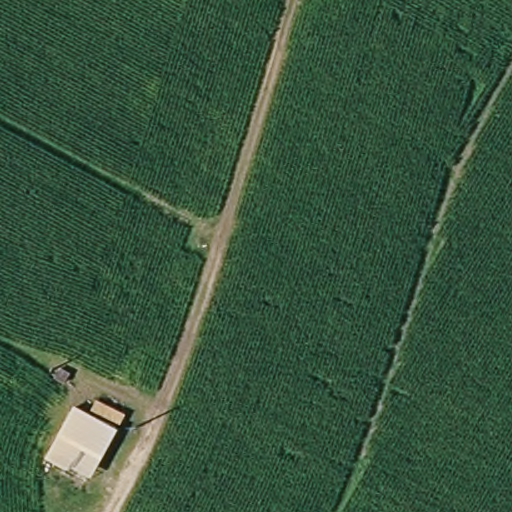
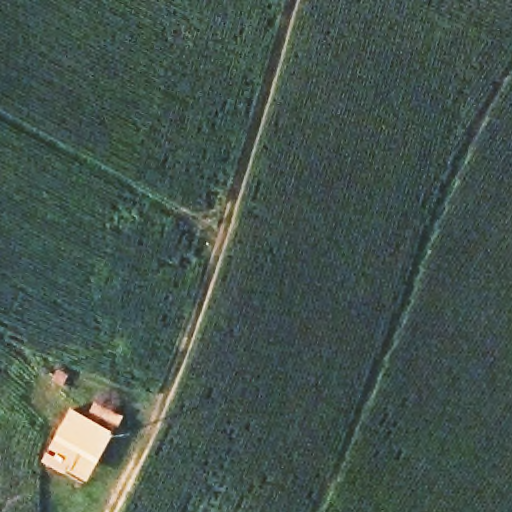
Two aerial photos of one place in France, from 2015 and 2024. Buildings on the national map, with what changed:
unchanged [(119,434),(121,435),(92,487),(47,463),(74,412),(119,434)]

